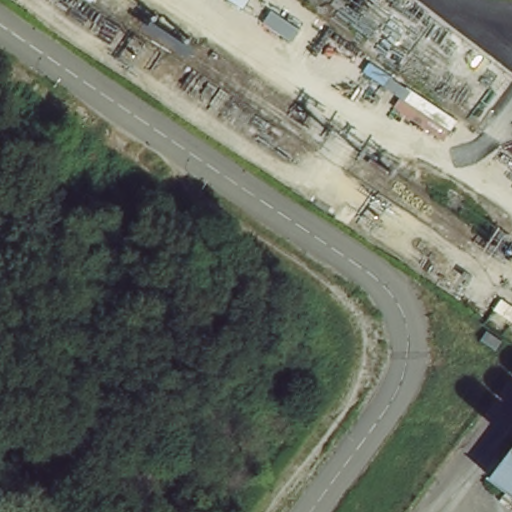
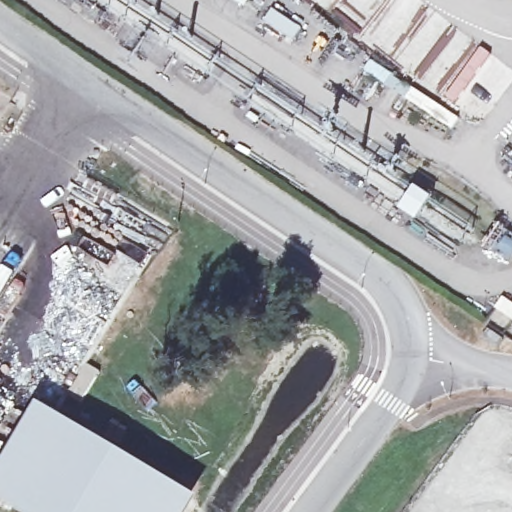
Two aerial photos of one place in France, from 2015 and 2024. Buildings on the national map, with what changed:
demolished [(426,275),(415,268),(387,247),(427,199),(427,197),(447,172),(461,182),(473,190),(485,199),(458,234),(436,263),(426,275)]
demolished [(506,287),(512,291),(512,306),(499,297),(506,287)]
new [(40,408),(200,504),(195,512),(16,512),(0,502),(0,472),(40,408)]
demolished [(512,449),(512,499),(488,482),(512,449)]

